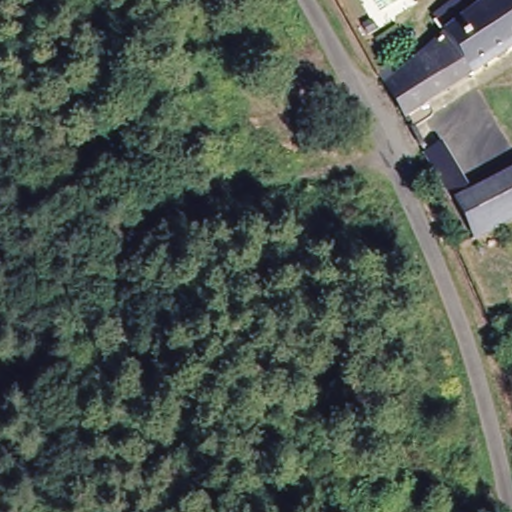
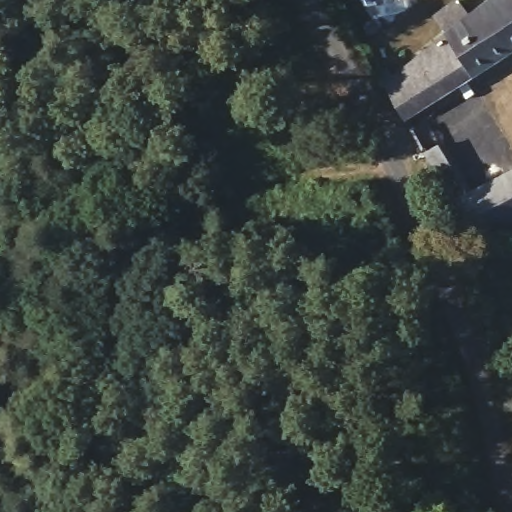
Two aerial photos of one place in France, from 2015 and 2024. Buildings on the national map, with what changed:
unchanged [(390,64),(398,75),(450,42),(446,33),(437,19),(463,2),(471,15),(492,0),(512,0),(512,50),(409,114),(380,70),(390,64)]
unchanged [(380,38),(372,44),(365,29),(374,25),(380,38)]
unchanged [(444,140),(469,190),(512,168),(512,217),(475,237),(431,147),(444,140)]

